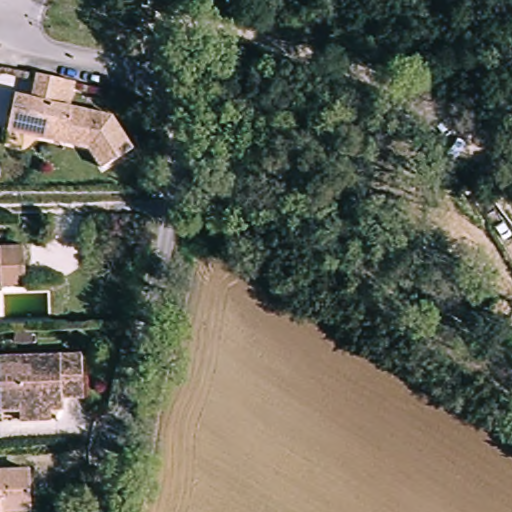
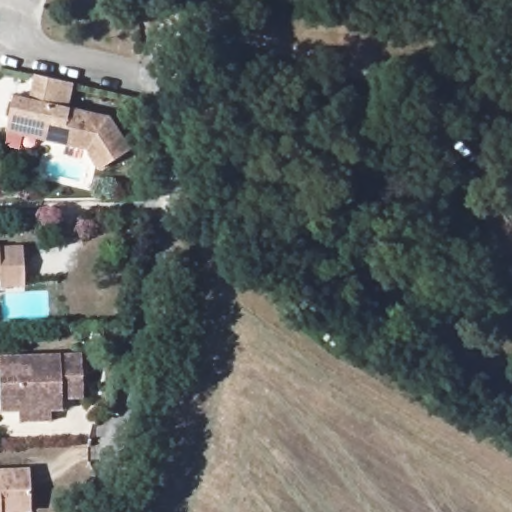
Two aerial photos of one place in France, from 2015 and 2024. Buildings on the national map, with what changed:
unchanged [(80,83),(75,107),(117,116),(138,149),(107,169),(93,149),(12,131),(20,95),(36,99),(42,74),(80,83)]
unchanged [(20,248),(21,287),(0,287),(0,248),(20,248)]
unchanged [(80,400),(60,402),(56,415),(0,417),(0,361),(79,358),(80,400)]
unchanged [(23,474),(22,511),(0,512),(0,474),(23,474)]

